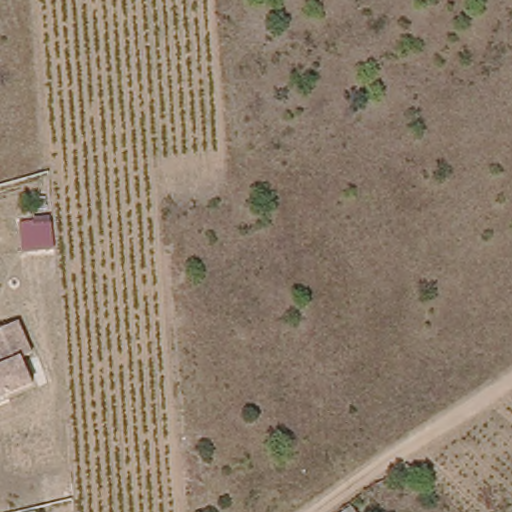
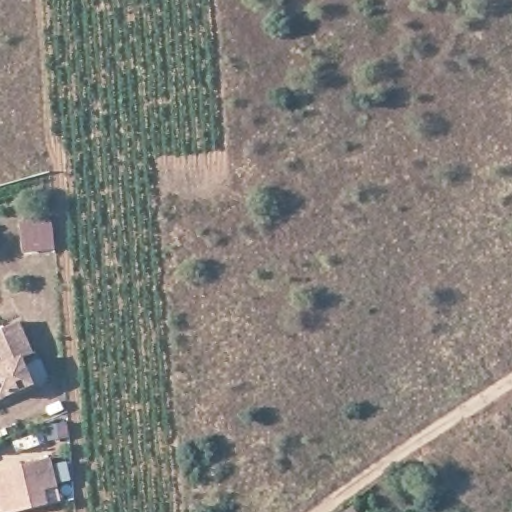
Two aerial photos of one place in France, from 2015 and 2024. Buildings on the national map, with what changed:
unchanged [(10,334),(23,366),(14,371),(25,396),(0,407),(0,338),(10,334)]
new [(59,486),(45,489),(48,506),(22,512),(3,512),(0,499),(0,470),(52,457),(59,486)]

